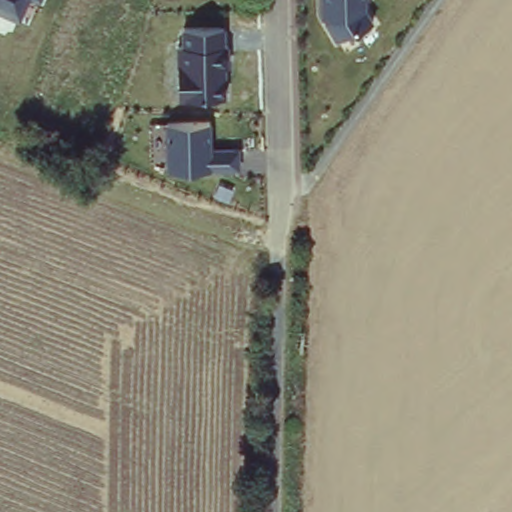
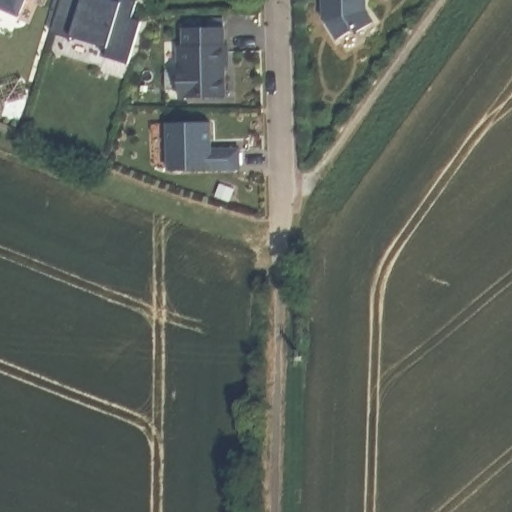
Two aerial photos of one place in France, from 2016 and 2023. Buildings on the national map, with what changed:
unchanged [(21,14),(0,5),(0,0),(27,0),(21,14)]
new [(147,7),(131,62),(110,55),(114,45),(76,32),(74,35),(50,26),(58,0),(128,0),(147,7)]
unchanged [(323,17),(323,0),(369,0),(368,4),(375,19),(336,36),(323,17)]
unchanged [(226,43),(230,44),(231,67),(225,67),(226,99),(182,100),(181,44),(188,44),(187,26),(225,25),(226,43)]
unchanged [(168,123),(212,122),(212,144),(236,144),(237,166),(169,167),(168,123)]

